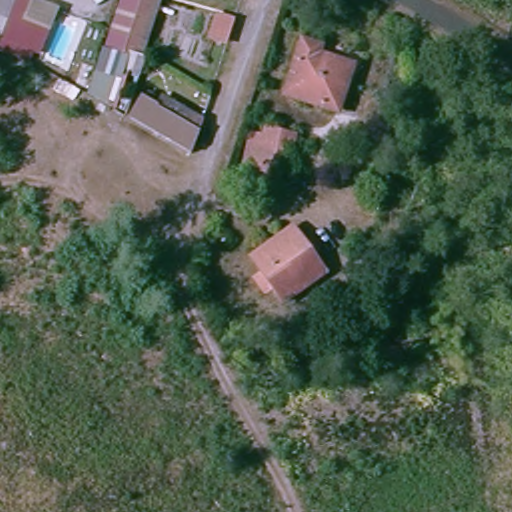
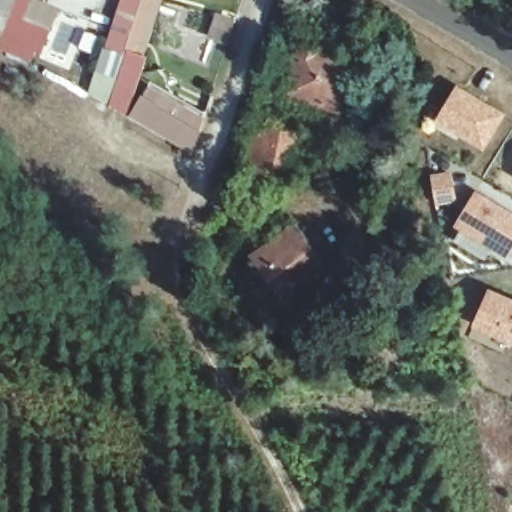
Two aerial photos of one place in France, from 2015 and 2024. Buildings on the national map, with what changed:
unchanged [(51,26),(41,54),(0,39),(0,0),(31,0),(25,15),(51,26)]
unchanged [(106,42),(121,0),(159,0),(142,54),(135,79),(122,75),(112,102),(85,92),(106,42)]
unchanged [(321,48),(318,55),(350,65),(337,106),(290,92),(305,41),(321,48)]
new [(504,114),(483,150),(433,122),(457,85),(504,114)]
unchanged [(131,120),(142,94),(202,125),(192,150),(131,120)]
unchanged [(244,167),(246,126),(296,130),(294,173),(244,167)]
new [(512,249),(506,259),(452,227),(476,190),(512,211),(512,249)]
unchanged [(255,257),(296,229),(325,276),(284,302),(255,257)]
new [(512,345),(471,327),(490,288),(512,298),(512,345)]

